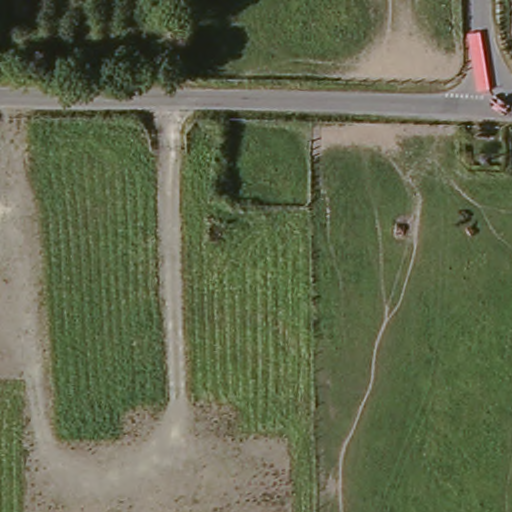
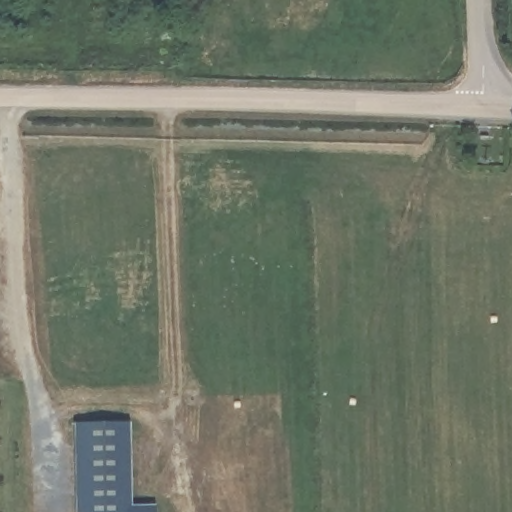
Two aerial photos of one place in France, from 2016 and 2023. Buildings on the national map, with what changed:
new [(124,426),(125,512),(85,512),(85,427),(124,426)]

